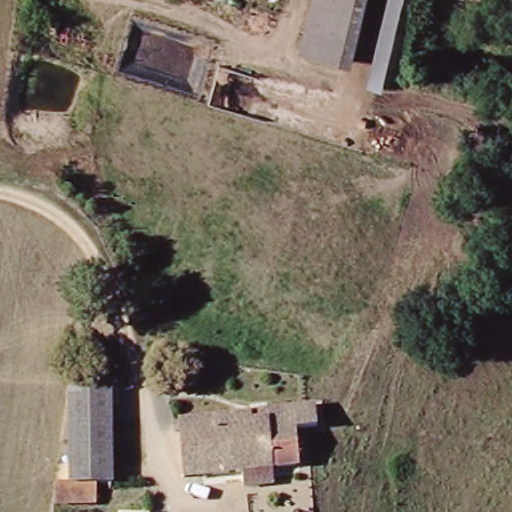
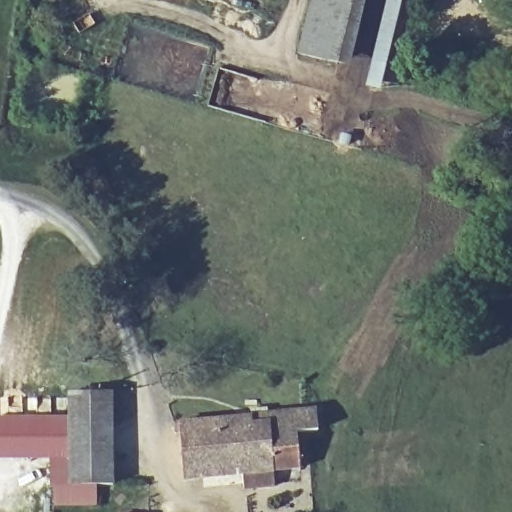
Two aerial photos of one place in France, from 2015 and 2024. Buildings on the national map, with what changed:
unchanged [(310,0),(321,0),(315,37),(304,35),(310,0)]
unchanged [(352,49),(315,37),(321,0),(363,0),(352,49)]
unchanged [(385,0),(400,0),(377,90),(365,87),(385,0)]
unchanged [(300,57),(304,35),(315,37),(352,49),(348,67),(300,57)]
unchanged [(68,418),(68,395),(110,393),(111,426),(69,428),(68,418)]
unchanged [(271,474),(271,485),(243,487),(242,476),(182,480),(176,419),(241,416),(292,412),(293,417),(311,415),(313,437),(294,439),(297,472),(271,474)]
new [(69,428),(69,458),(0,460),(0,420),(68,418),(69,428)]
unchanged [(71,487),(69,458),(69,428),(111,426),(113,485),(93,485),(94,505),(53,506),(53,487),(71,487)]

